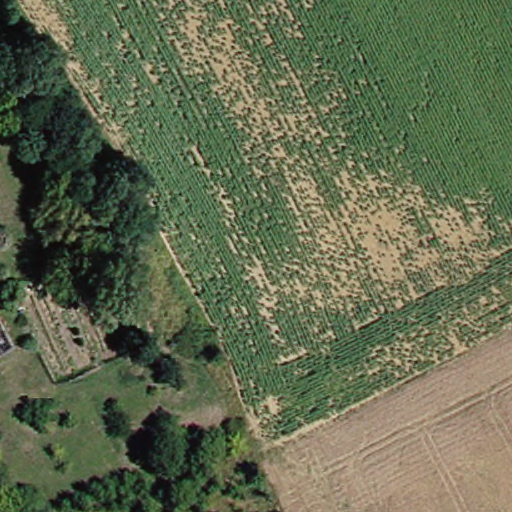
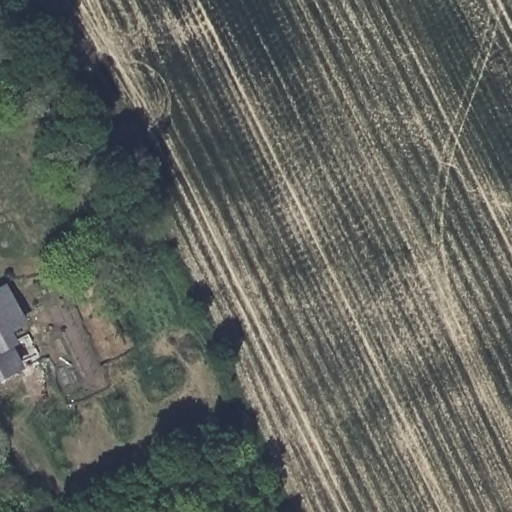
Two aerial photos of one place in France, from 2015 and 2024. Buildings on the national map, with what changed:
new [(5,284),(26,326),(10,332),(16,345),(11,347),(22,369),(0,381),(0,287),(5,284)]
demolished [(8,346),(11,350),(0,357),(0,332),(8,346)]

